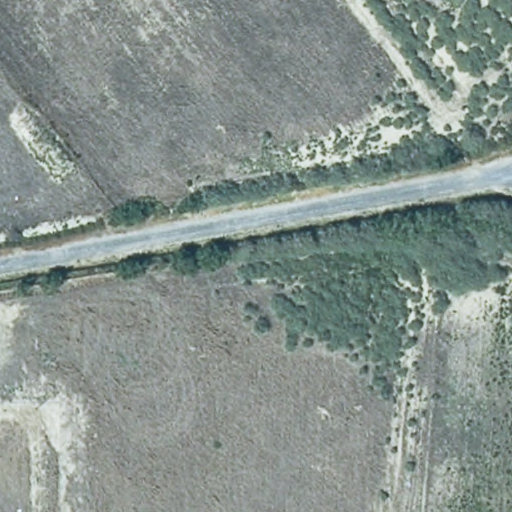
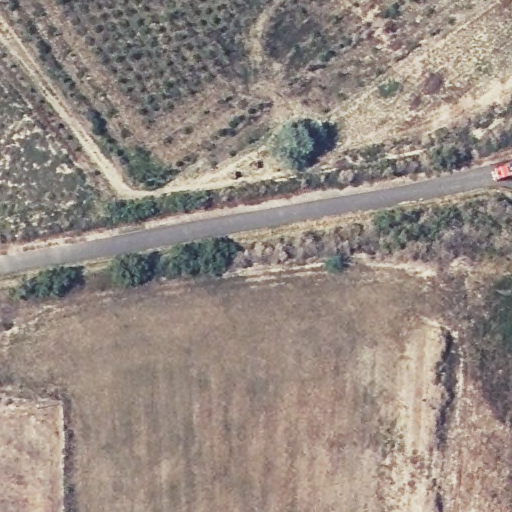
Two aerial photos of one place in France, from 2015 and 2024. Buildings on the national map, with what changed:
[]

